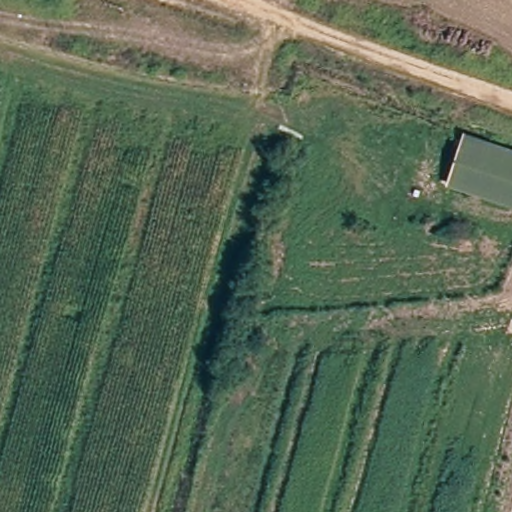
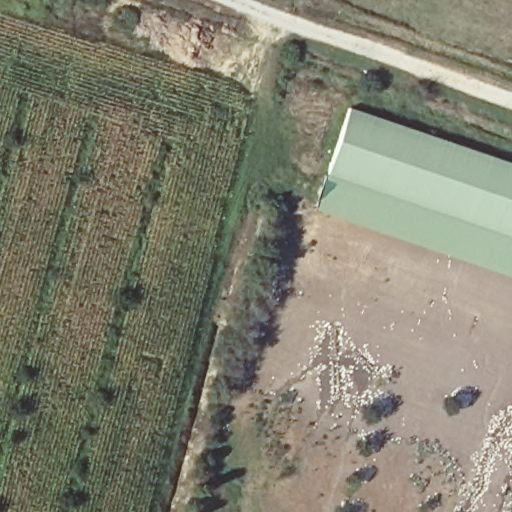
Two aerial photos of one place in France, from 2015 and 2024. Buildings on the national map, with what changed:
new [(512,162),(512,235),(325,172),(349,106),(512,162)]
demolished [(444,180),(461,136),(512,154),(512,204),(444,180)]
new [(325,172),(512,235),(512,276),(313,207),(325,172)]

